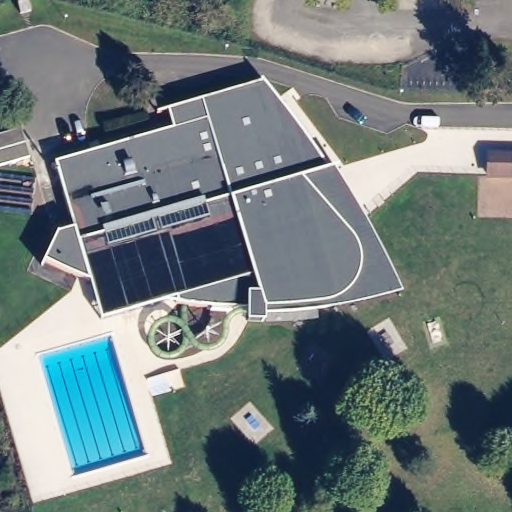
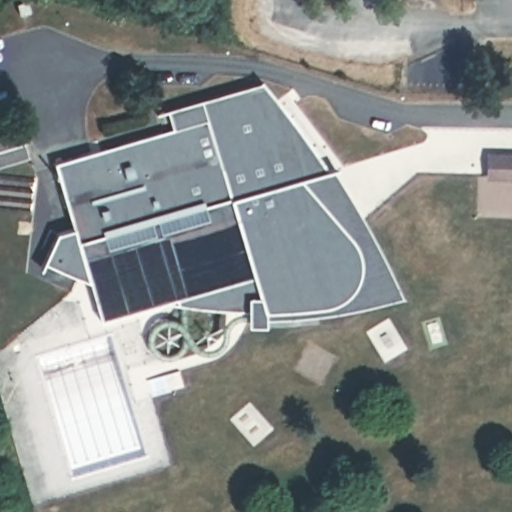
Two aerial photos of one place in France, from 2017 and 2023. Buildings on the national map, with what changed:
unchanged [(27,0),(30,11),(20,14),(17,4),(27,0)]
unchanged [(171,130),(166,111),(261,82),(327,170),(335,169),(401,296),(347,307),(314,312),(282,315),(264,315),(263,325),(246,323),(247,310),(180,304),(177,297),(101,318),(89,280),(45,262),(56,234),(73,228),(56,164),(171,130)]
unchanged [(483,159),(512,158),(512,187),(484,182),(483,159)]

